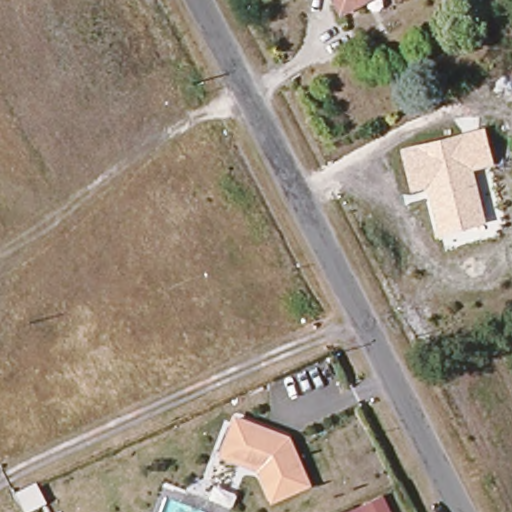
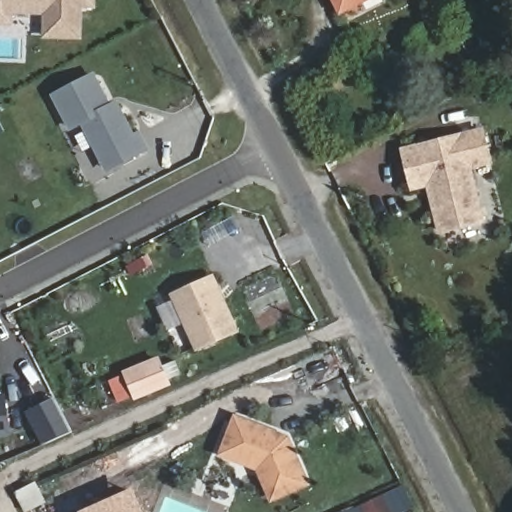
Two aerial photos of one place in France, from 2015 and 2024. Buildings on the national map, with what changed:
new [(43,39),(42,14),(14,14),(14,26),(0,26),(0,0),(97,0),(97,8),(84,8),(82,40),(43,39)]
demolished [(56,0),(120,0),(152,66),(100,89),(55,1),(56,0)]
unchanged [(342,0),(365,0),(346,10),(342,0)]
new [(151,151),(106,173),(84,125),(71,131),(52,94),(95,72),(112,103),(117,100),(135,134),(141,131),(151,151)]
unchanged [(439,234),(427,188),(411,192),(399,147),(485,127),(495,165),(474,170),(486,223),(439,234)]
new [(241,332),(195,352),(170,294),(214,274),(241,332)]
new [(134,402),(122,372),(160,357),(171,386),(134,402)]
new [(12,437),(0,438),(0,393),(6,393),(12,437)]
new [(55,400),(71,431),(43,443),(28,413),(55,400)]
unchanged [(289,433),(310,484),(265,501),(252,467),(215,452),(229,412),(289,433)]
unchanged [(46,503),(33,508),(35,512),(23,512),(13,490),(35,480),(46,503)]
new [(144,512),(80,512),(134,488),(144,512)]
new [(401,509),(394,512),(358,512),(358,511),(394,493),(401,509)]

